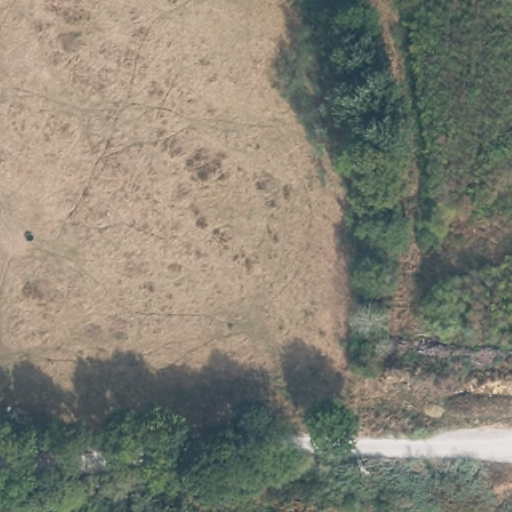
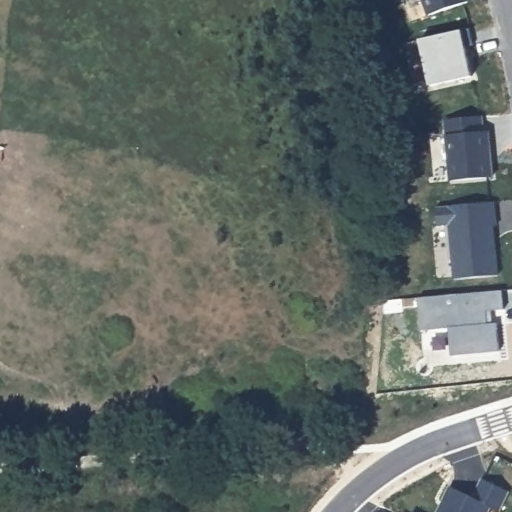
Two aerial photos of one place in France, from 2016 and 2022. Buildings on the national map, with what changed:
new [(427,16),(422,0),(465,0),(466,2),(427,16)]
new [(470,29),(474,45),(466,47),(473,77),(432,87),(421,39),(470,29)]
new [(480,117),(482,132),(487,132),(492,178),(451,182),(445,120),(480,117)]
new [(498,226),(495,226),(497,250),(500,276),(456,280),(451,226),(440,227),(438,208),(496,202),(498,226)]
new [(419,330),(418,297),(503,290),(504,310),(487,311),(488,323),(497,322),(499,351),(451,354),(449,328),(419,330)]
new [(450,488),(473,500),(482,482),(507,493),(498,512),(489,508),(487,512),(439,512),(450,488)]

